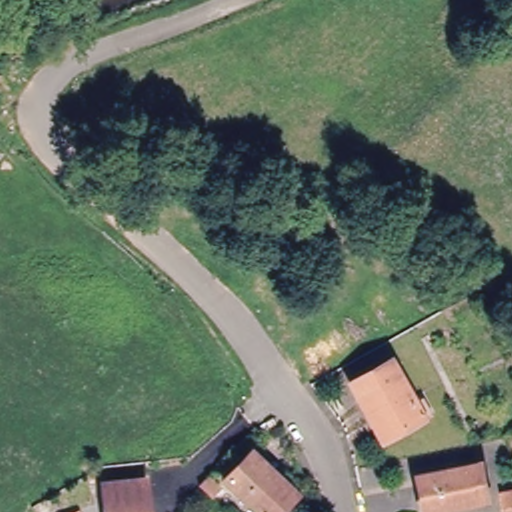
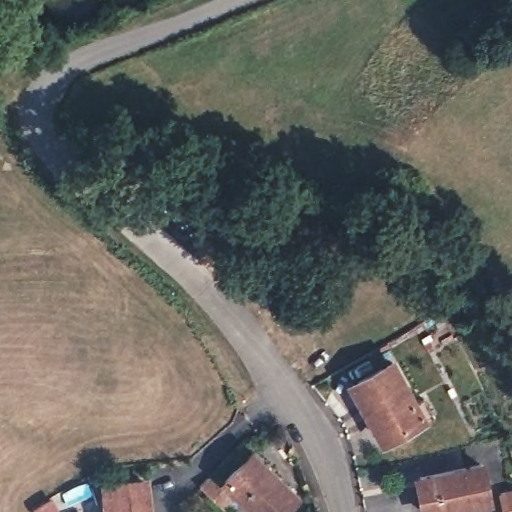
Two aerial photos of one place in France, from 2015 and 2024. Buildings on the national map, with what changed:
unchanged [(407,405),(415,400),(423,415),(381,436),(350,385),(385,365),(407,405)]
unchanged [(256,456),(300,497),(285,512),(255,512),(228,485),(256,456)]
unchanged [(483,505),(420,511),(415,478),(479,470),(483,505)]
unchanged [(201,490),(214,480),(229,494),(217,505),(201,490)]
unchanged [(151,485),(147,512),(106,512),(109,485),(151,485)]
unchanged [(512,506),(512,512),(502,512),(501,508),(512,506)]
unchanged [(74,512),(73,512),(74,511),(74,512)]

